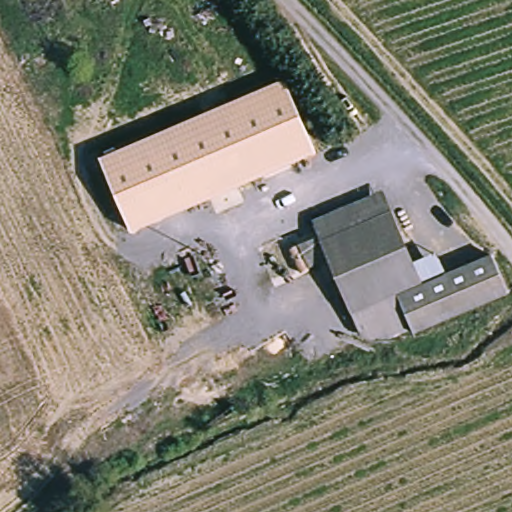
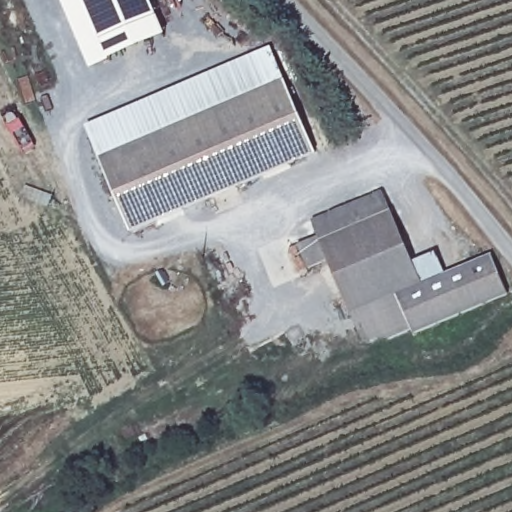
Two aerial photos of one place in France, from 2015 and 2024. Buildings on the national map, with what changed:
new [(108,61),(90,69),(61,0),(151,0),(158,19),(167,37),(108,61)]
new [(267,49),(283,80),(97,156),(86,128),(267,49)]
unchanged [(312,150),(126,227),(97,156),(283,80),(312,150)]
unchanged [(309,220),(378,189),(390,216),(321,248),(309,220)]
unchanged [(321,248),(390,216),(410,259),(342,293),(321,248)]
unchanged [(507,294),(418,335),(413,328),(398,297),(423,285),(490,255),(507,294)]
unchanged [(410,259),(423,285),(398,297),(351,315),(342,293),(410,259)]
unchanged [(398,297),(413,328),(371,347),(351,315),(398,297)]

